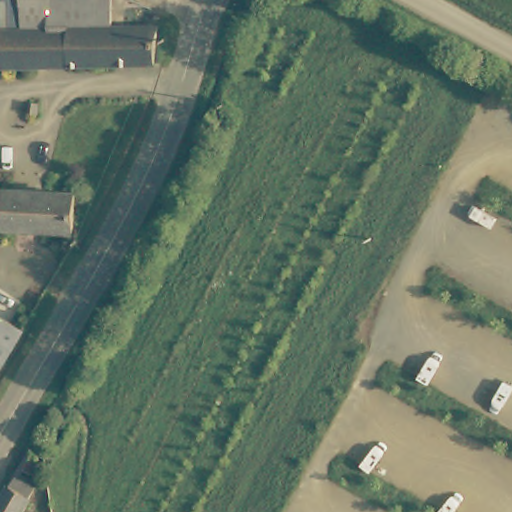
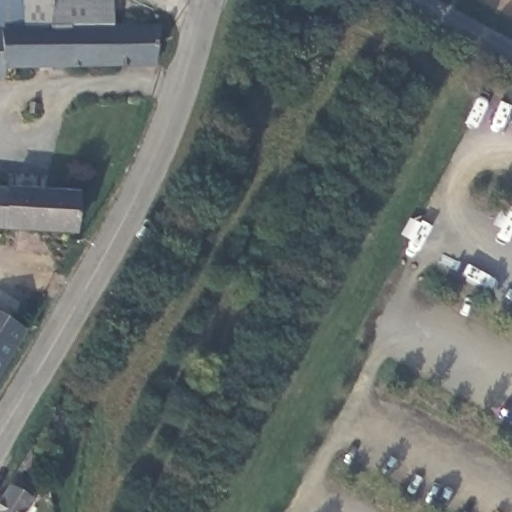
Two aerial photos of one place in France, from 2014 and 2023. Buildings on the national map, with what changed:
unchanged [(23,0),(23,32),(0,32),(0,0),(23,0)]
unchanged [(59,0),(59,2),(110,1),(110,28),(23,32),(23,0),(59,0)]
unchanged [(1,70),(0,32),(23,32),(110,28),(155,27),(156,65),(1,70)]
unchanged [(0,82),(0,32),(1,70),(1,82),(0,82)]
unchanged [(74,198),(72,236),(0,231),(0,194),(74,198)]
unchanged [(19,334),(0,363),(0,322),(19,334)]
unchanged [(65,450),(50,474),(44,470),(37,481),(31,477),(26,475),(32,465),(24,460),(39,435),(65,450)]
unchanged [(18,471),(26,475),(31,477),(16,506),(22,509),(21,512),(0,512),(0,503),(18,471)]

